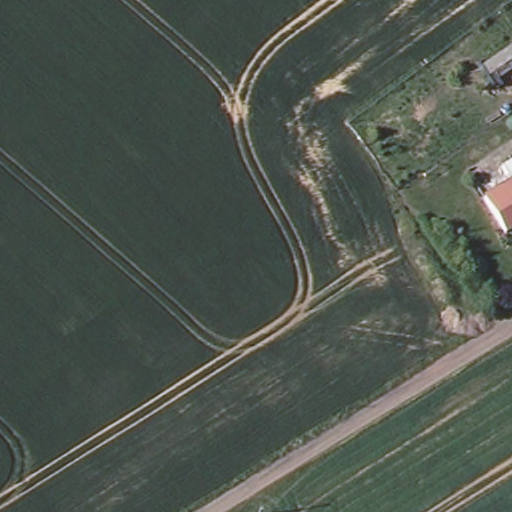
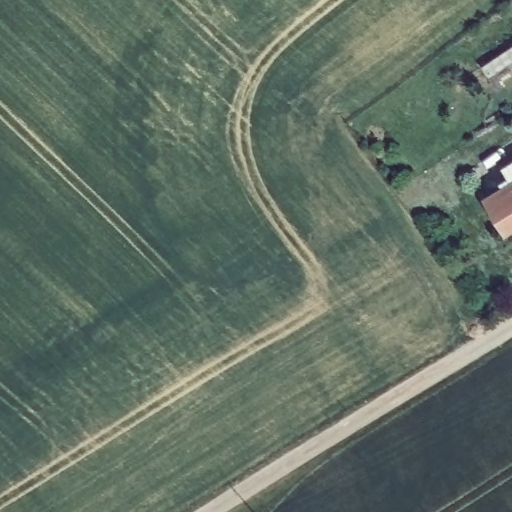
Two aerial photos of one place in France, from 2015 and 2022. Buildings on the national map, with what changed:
unchanged [(505,173),(512,169),(512,185),(505,173)]
unchanged [(512,189),(512,236),(509,238),(487,204),(512,189)]

